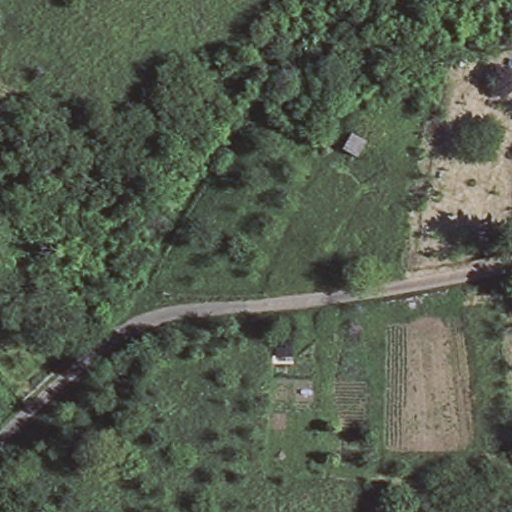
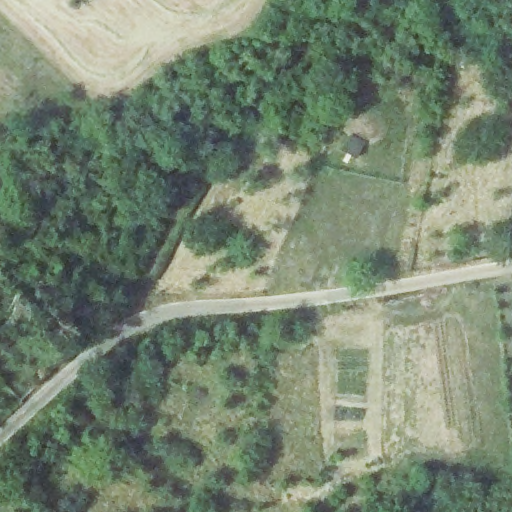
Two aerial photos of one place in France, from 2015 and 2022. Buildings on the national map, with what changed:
[]

